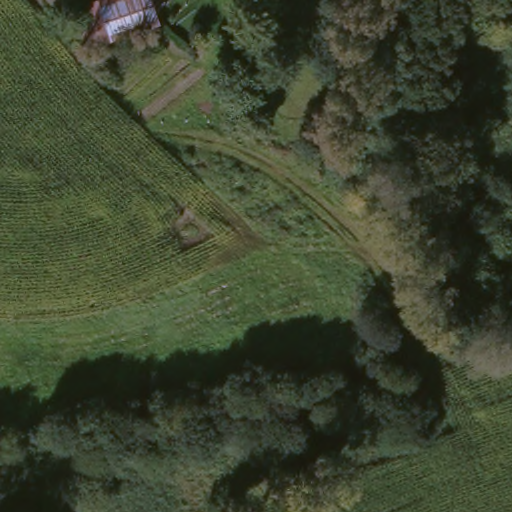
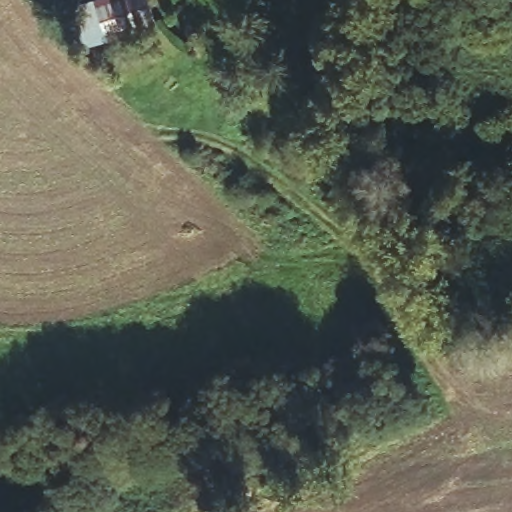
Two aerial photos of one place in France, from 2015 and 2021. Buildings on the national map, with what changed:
unchanged [(154,30),(103,49),(99,38),(76,47),(64,14),(102,0),(144,0),(154,30)]

